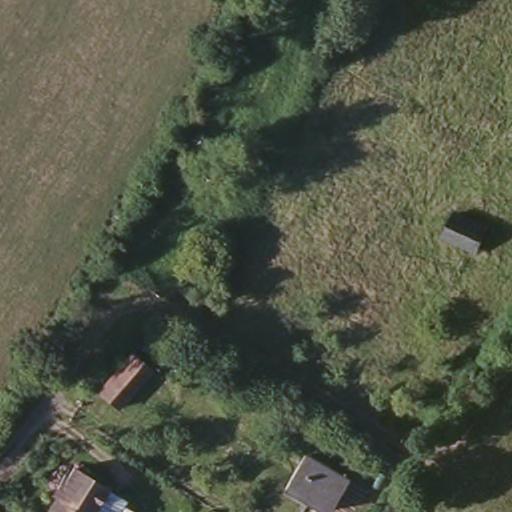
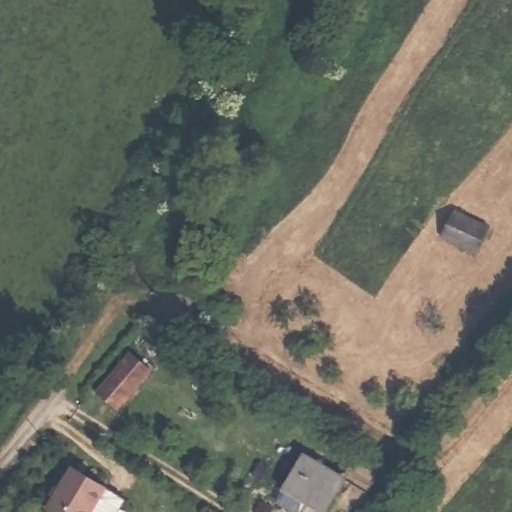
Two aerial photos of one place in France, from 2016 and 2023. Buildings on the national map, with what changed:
unchanged [(485,253),(441,230),(463,204),(493,219),(485,253)]
unchanged [(130,347),(150,367),(115,406),(95,387),(130,347)]
unchanged [(310,449),(352,473),(330,511),(287,486),(310,449)]
unchanged [(75,463),(105,492),(85,512),(58,512),(45,500),(75,463)]
unchanged [(121,507),(117,512),(85,512),(105,492),(121,507)]

